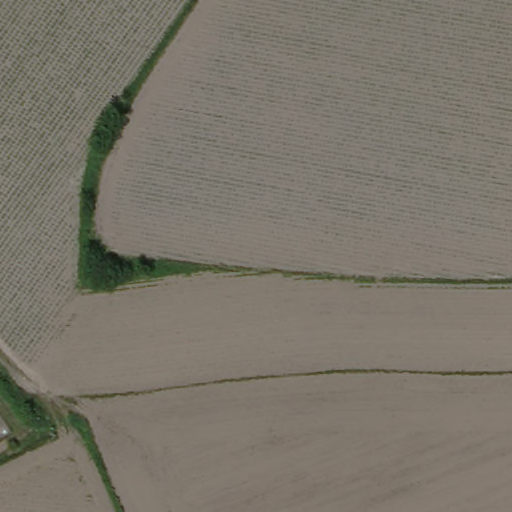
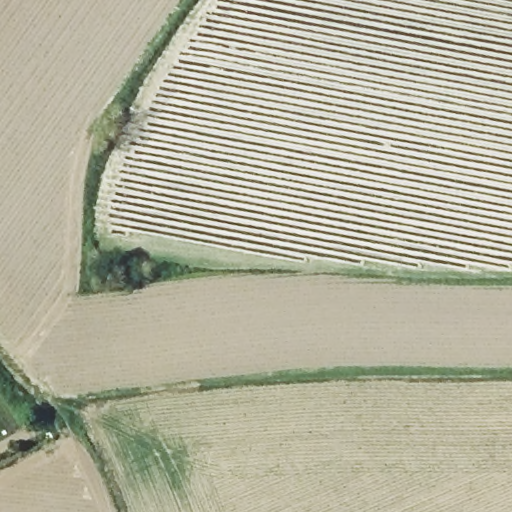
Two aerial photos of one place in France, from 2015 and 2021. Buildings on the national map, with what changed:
[]

